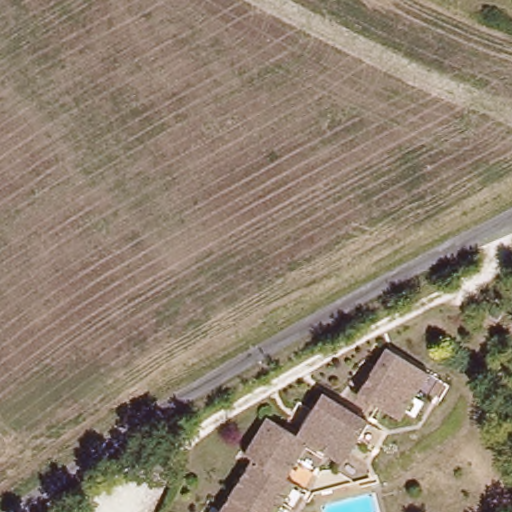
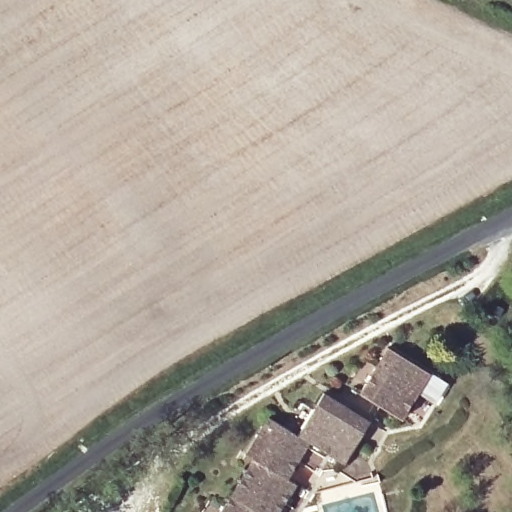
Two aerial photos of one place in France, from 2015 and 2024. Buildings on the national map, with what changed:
unchanged [(423,399),(407,390),(392,418),(348,392),(374,345),(418,369),(434,378),(423,399)]
unchanged [(248,459),(240,454),(264,415),(295,431),(319,390),(367,417),(343,461),(309,442),(288,477),(296,483),(279,512),(217,512),(248,459)]

